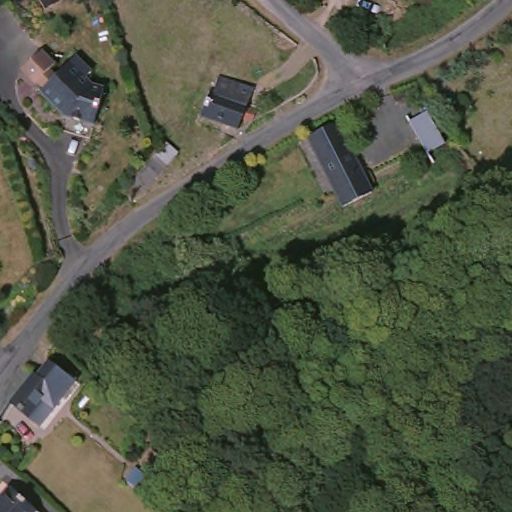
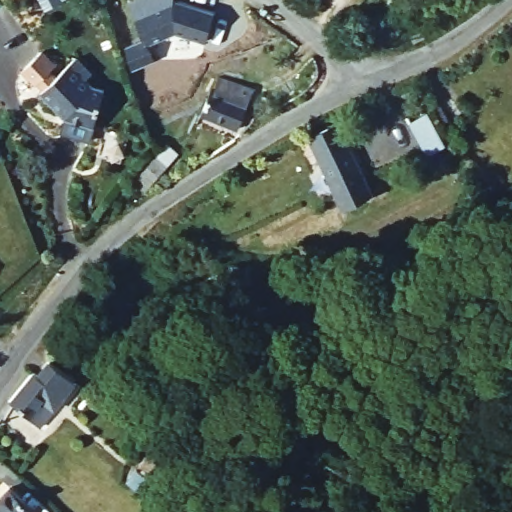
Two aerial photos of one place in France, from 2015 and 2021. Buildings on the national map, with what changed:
new [(45,11),(40,0),(68,0),(45,11)]
new [(136,0),(173,0),(173,2),(214,17),(204,45),(174,34),(144,45),(128,3),(136,0)]
unchanged [(62,141),(67,125),(41,95),(46,90),(37,80),(33,82),(21,69),(39,52),(52,68),(47,72),(54,82),(79,63),(93,80),(89,84),(103,101),(94,129),(89,147),(62,141)]
unchanged [(240,111),(250,116),(244,130),(234,125),(230,134),(194,119),(208,92),(212,94),(218,82),(247,96),(240,111)]
unchanged [(422,115),(440,148),(423,157),(405,125),(422,115)]
unchanged [(356,117),(387,189),(334,211),(303,139),(356,117)]
unchanged [(159,149),(172,160),(144,191),(132,181),(155,152),(159,149)]
unchanged [(37,383),(49,365),(74,382),(42,432),(7,411),(29,378),(37,383)]
unchanged [(2,493),(29,512),(0,512),(0,495),(2,493)]

